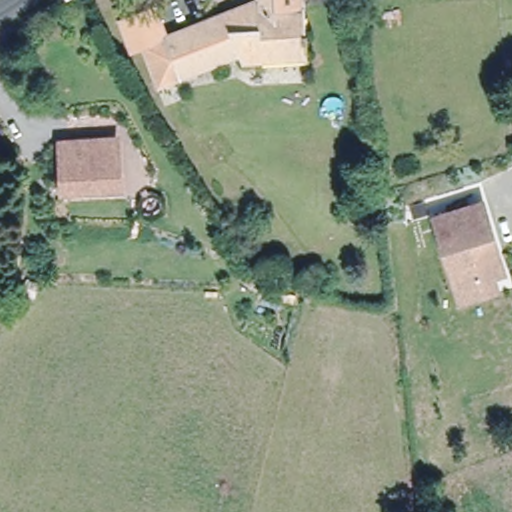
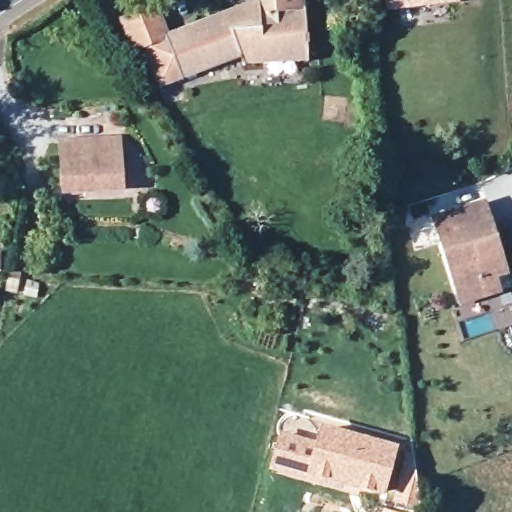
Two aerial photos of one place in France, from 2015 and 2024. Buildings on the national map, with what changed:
unchanged [(257,0),(302,0),(303,10),(308,59),(245,64),(241,55),(179,80),(163,39),(257,1),(257,0)]
new [(385,11),(384,0),(459,0),(459,3),(385,11)]
unchanged [(179,80),(155,89),(139,51),(129,56),(116,23),(152,9),(163,39),(179,80)]
unchanged [(122,186),(67,185),(67,137),(122,138),(122,186)]
unchanged [(462,290),(457,276),(435,208),(481,193),(488,216),(497,241),(503,261),(492,265),(496,279),(462,290)]
new [(278,434),(291,432),(295,433),(314,440),(320,423),(399,445),(385,496),(338,489),(269,469),(278,434)]

